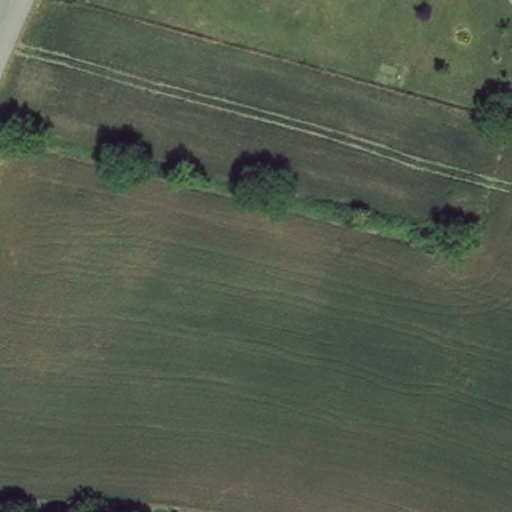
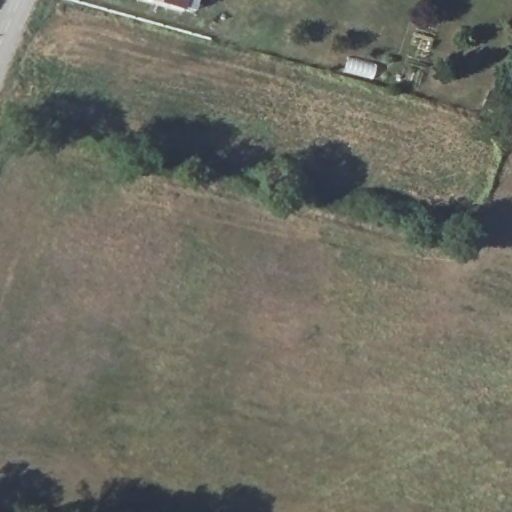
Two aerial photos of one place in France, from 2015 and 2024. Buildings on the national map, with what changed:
new [(151,0),(191,0),(189,11),(151,0)]

